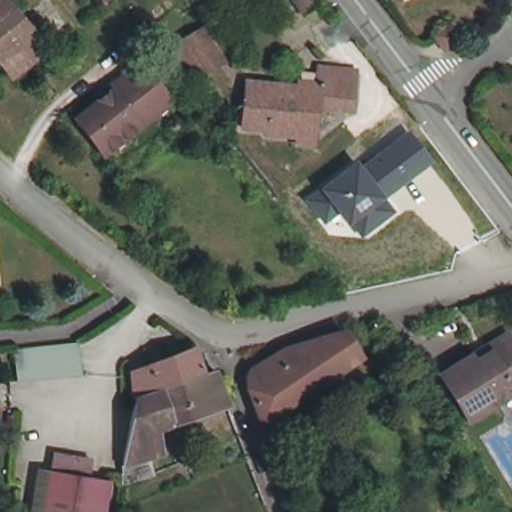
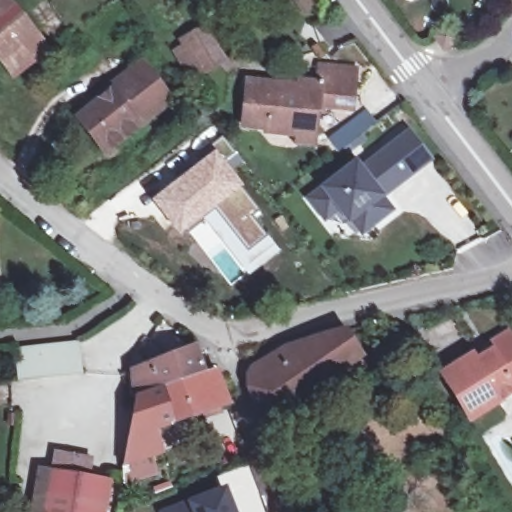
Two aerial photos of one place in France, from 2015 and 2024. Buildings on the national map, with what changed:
unchanged [(6,0),(14,0),(53,49),(37,62),(19,76),(0,52),(0,4),(6,0)]
unchanged [(295,0),(321,0),(322,2),(306,14),(295,0)]
unchanged [(452,33),(461,46),(462,46),(449,55),(440,42),(452,33)]
unchanged [(197,67),(189,54),(207,43),(215,56),(197,67)]
unchanged [(80,120),(113,95),(110,90),(128,76),(143,64),(173,104),(158,116),(108,156),(80,120)]
unchanged [(306,142),(308,132),(306,133),(271,129),(272,126),(249,124),(254,81),(283,83),(306,85),(306,81),(325,83),(326,67),(361,70),(358,108),(324,105),(321,131),(320,144),(306,142)]
unchanged [(359,238),(337,212),(322,224),(303,200),(355,159),(361,166),(408,130),(433,161),(385,197),(394,211),(359,238)]
new [(214,148),(211,144),(221,136),(236,155),(230,164),(231,166),(230,167),(243,185),(241,187),(213,212),(178,237),(149,200),(214,148)]
new [(241,187),(256,207),(249,213),(266,236),(246,251),(213,212),(241,187)]
unchanged [(323,344),(351,336),(371,331),(384,350),(345,376),(323,344)]
unchanged [(443,374),(473,356),(489,347),(508,335),(512,341),(512,395),(471,419),(443,374)]
unchanged [(81,341),(86,372),(28,379),(23,379),(19,350),(81,341)]
unchanged [(268,427),(253,394),(254,374),(289,356),(323,344),(345,376),(268,427)]
unchanged [(140,400),(134,402),(133,378),(194,355),(203,377),(140,400)]
unchanged [(125,486),(123,475),(123,467),(128,432),(133,409),(141,407),(140,400),(203,377),(214,375),(228,409),(146,438),(148,460),(153,479),(125,486)]
unchanged [(94,479),(89,512),(35,512),(45,452),(81,458),(79,476),(94,479)]
new [(159,511),(186,501),(226,486),(236,512),(159,512),(159,511)]

